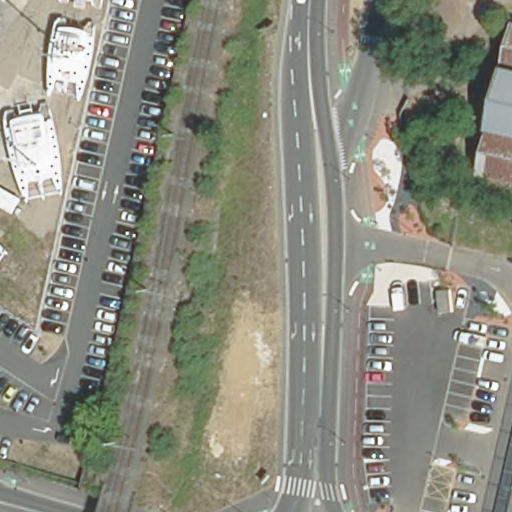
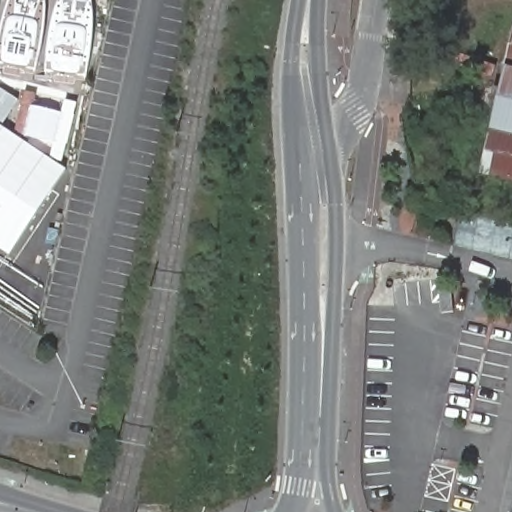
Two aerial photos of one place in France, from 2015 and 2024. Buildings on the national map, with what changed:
unchanged [(512,41),(512,181),(482,174),(512,41)]
new [(19,99),(1,125),(66,169),(9,254),(0,249),(0,87),(19,99)]
unchanged [(512,457),(512,512),(500,512),(512,457)]

